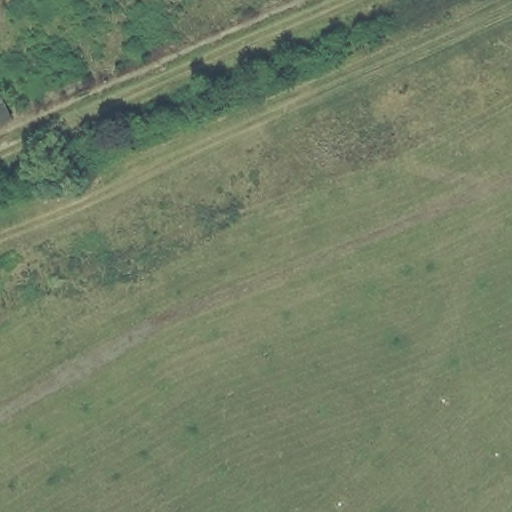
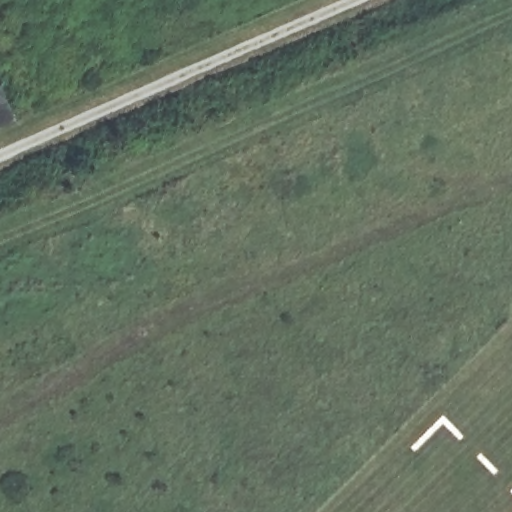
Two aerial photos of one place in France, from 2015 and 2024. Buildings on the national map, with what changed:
unchanged [(16,121),(0,128),(0,84),(16,121)]

